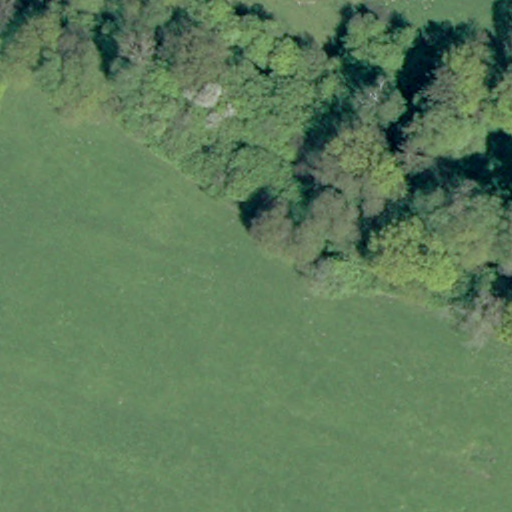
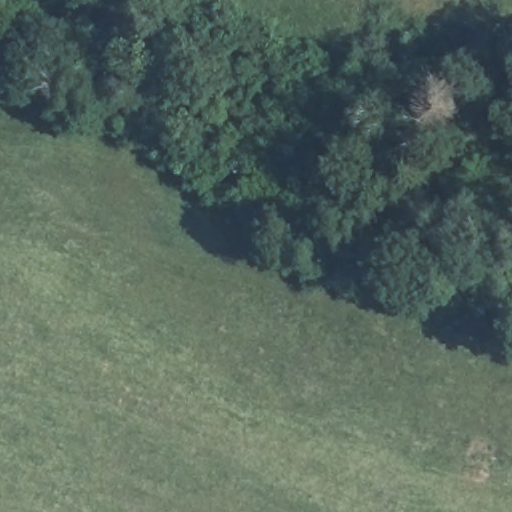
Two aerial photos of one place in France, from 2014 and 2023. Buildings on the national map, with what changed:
unchanged [(387,223),(376,242),(360,233),(369,214),(387,223)]

